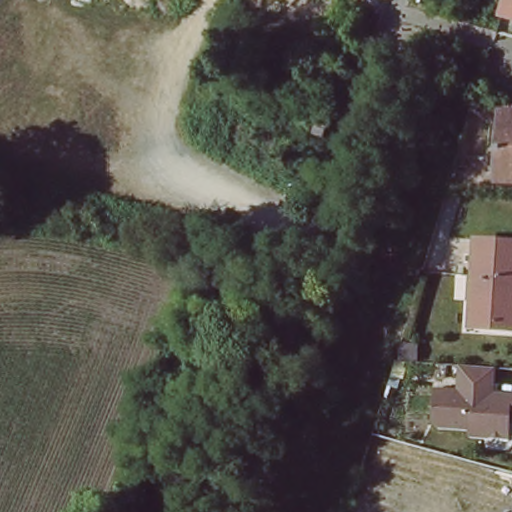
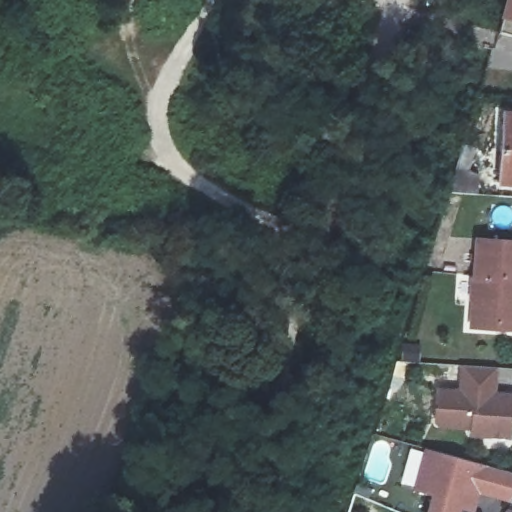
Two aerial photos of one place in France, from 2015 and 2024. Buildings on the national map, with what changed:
unchanged [(509,0),(512,0),(512,20),(504,18),(509,0)]
unchanged [(344,109),(336,106),(333,115),(304,106),(314,74),(343,82),(341,90),(349,93),(344,109)]
unchanged [(512,114),(512,185),(502,184),(507,114),(512,114)]
unchanged [(330,128),(327,140),(313,136),(317,124),(330,128)]
unchanged [(479,237),(512,240),(512,328),(500,327),(472,324),(472,316),(479,237)]
unchanged [(500,405),(512,406),(512,436),(474,433),(474,426),(443,424),(438,418),(440,389),(464,390),(464,377),(501,379),(500,405)]
demolished [(436,512),(381,512),(400,446),(448,460),(437,507),(436,512)]
new [(512,473),(512,492),(509,502),(479,495),(474,512),(423,512),(428,493),(412,490),(422,449),(512,473)]
new [(512,512),(505,512),(506,509),(512,512)]

